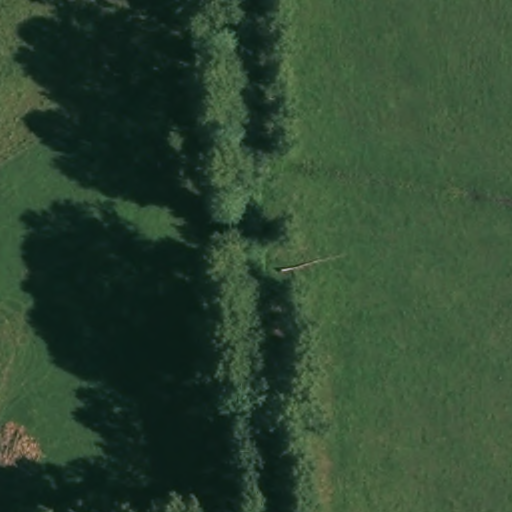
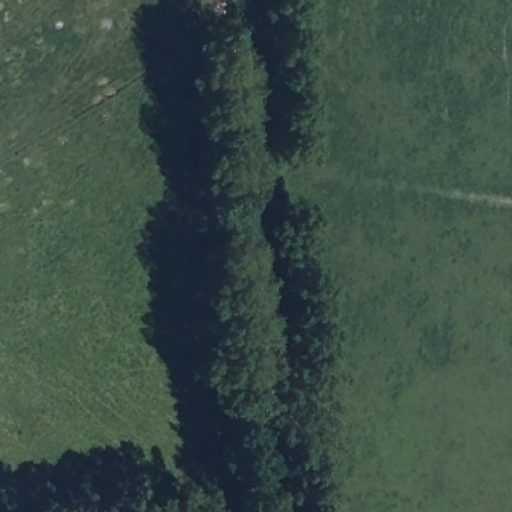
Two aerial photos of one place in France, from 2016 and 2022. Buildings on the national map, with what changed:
[]

